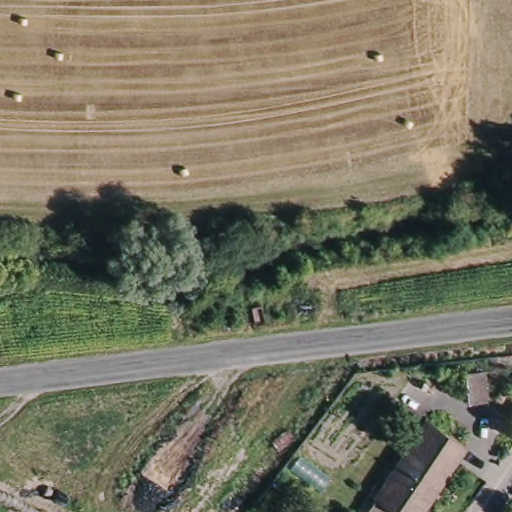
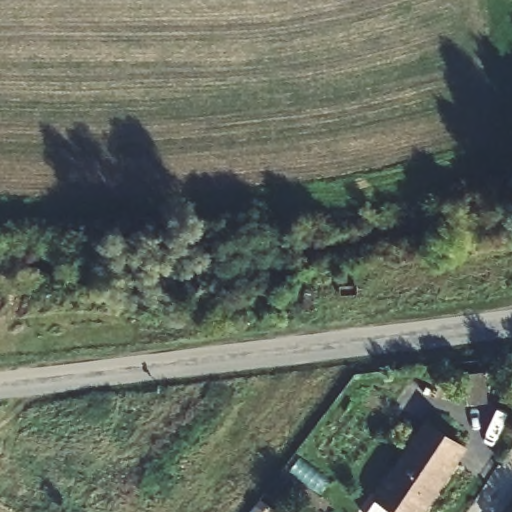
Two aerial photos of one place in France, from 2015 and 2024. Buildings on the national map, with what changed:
unchanged [(478,370),(481,403),(465,405),(462,371),(478,370)]
unchanged [(435,415),(473,443),(424,512),(376,512),(369,507),(381,488),(435,415)]

